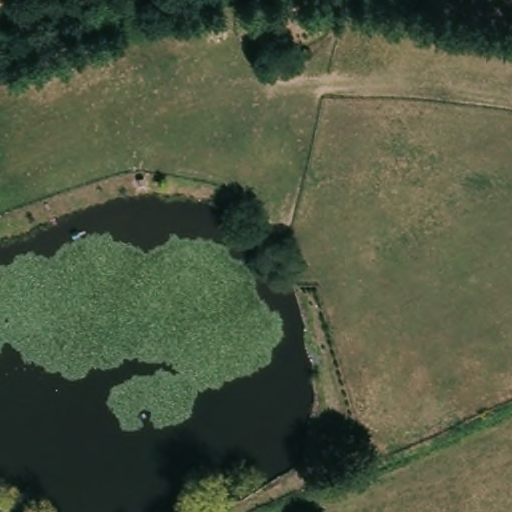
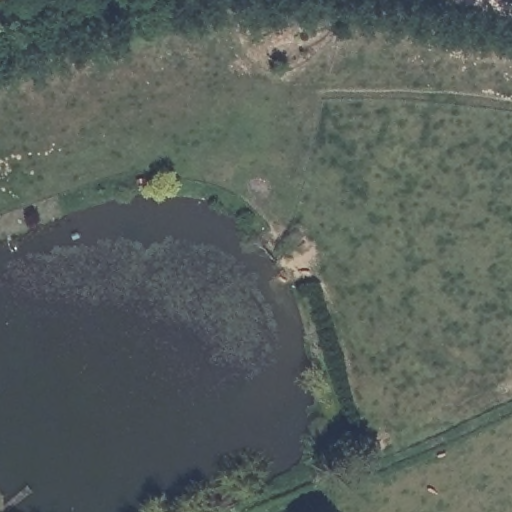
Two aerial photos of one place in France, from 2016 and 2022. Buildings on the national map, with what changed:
[]

